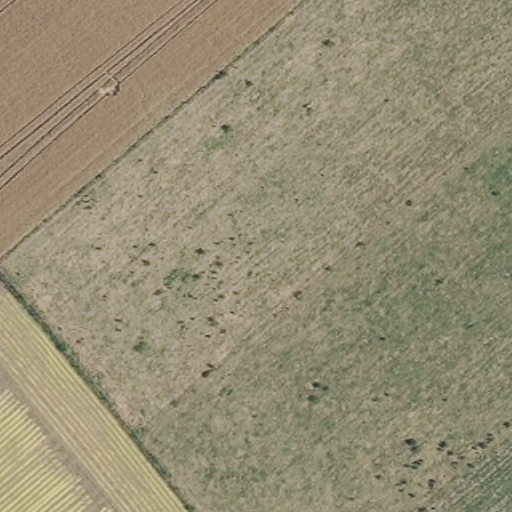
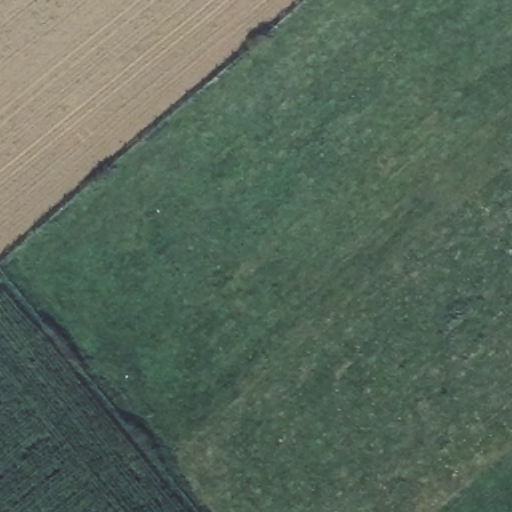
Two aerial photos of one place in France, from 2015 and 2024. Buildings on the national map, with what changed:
[]

